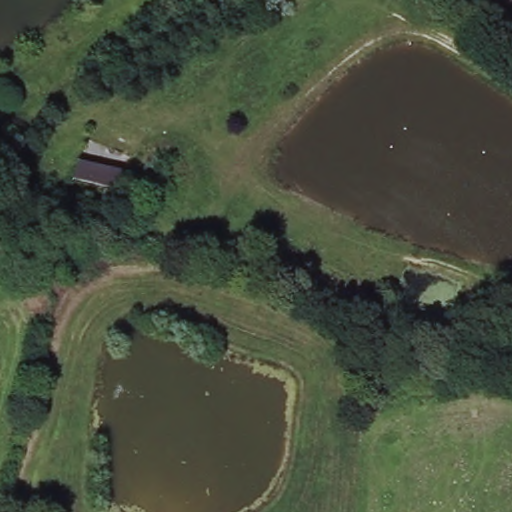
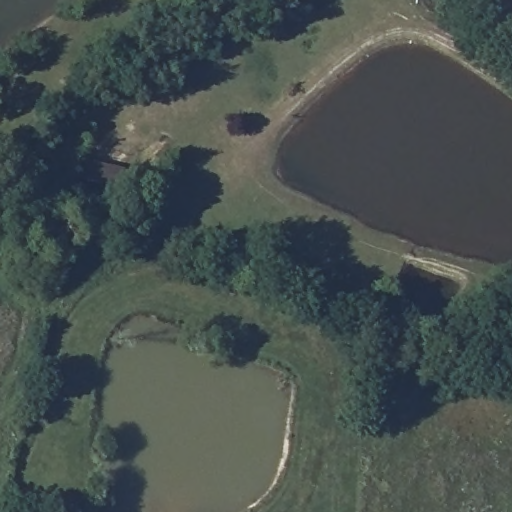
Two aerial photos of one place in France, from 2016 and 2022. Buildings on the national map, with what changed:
unchanged [(118,187),(76,178),(81,160),(121,169),(118,187)]

